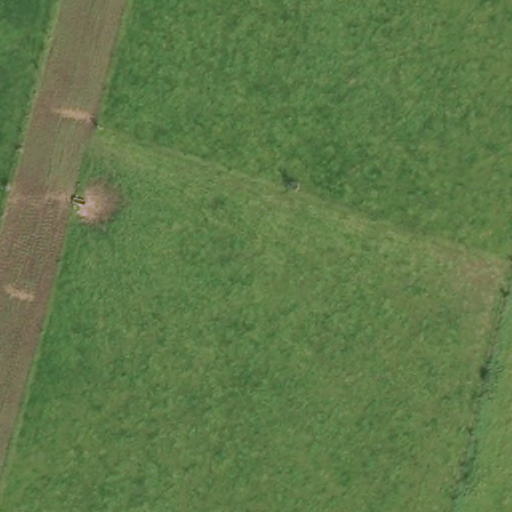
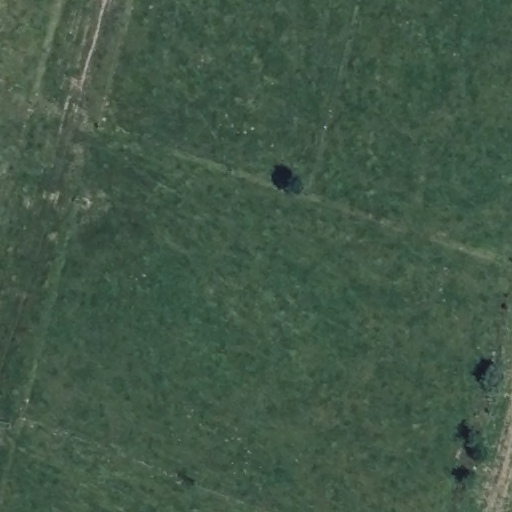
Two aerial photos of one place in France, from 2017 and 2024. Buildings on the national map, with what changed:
[]

